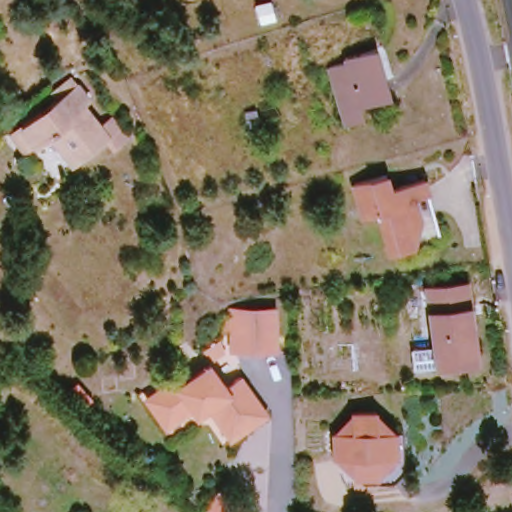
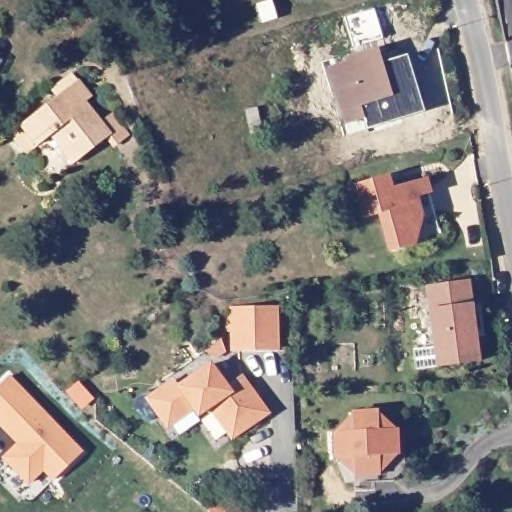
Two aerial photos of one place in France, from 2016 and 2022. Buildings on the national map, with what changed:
unchanged [(391,92),(364,101),(366,114),(349,119),(333,62),(350,57),(348,51),(376,43),(391,92)]
unchanged [(80,96),(73,102),(98,132),(68,157),(45,129),(18,151),(3,132),(68,82),(80,96)]
unchanged [(388,186),(423,176),(427,197),(414,200),(419,219),(409,222),(414,242),(389,249),(379,216),(361,220),(351,182),(384,172),(388,186)]
unchanged [(481,356),(437,362),(426,282),(470,276),(481,356)]
unchanged [(229,299),(236,299),(276,299),(276,342),(236,342),(229,343),(229,299)]
unchanged [(208,403),(198,411),(193,405),(164,427),(142,401),(148,396),(173,377),(178,382),(208,360),(224,381),(238,371),(266,407),(236,430),(231,433),(208,403)]
new [(53,483),(44,474),(28,486),(3,457),(15,445),(0,429),(0,385),(9,376),(84,453),(53,483)]
unchanged [(397,464),(384,479),(368,480),(366,471),(345,472),(345,469),(328,452),(325,454),(324,432),(342,413),(341,408),(366,408),(367,412),(384,427),(396,427),(397,464)]
unchanged [(237,512),(229,512),(233,508),(237,512)]

